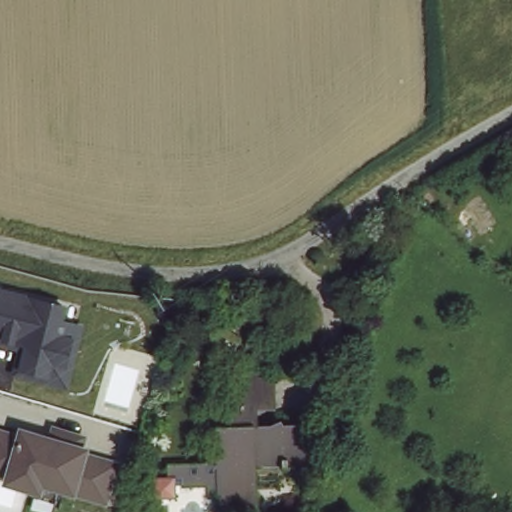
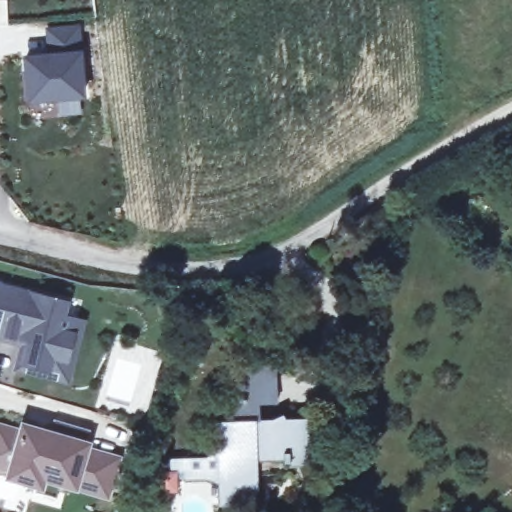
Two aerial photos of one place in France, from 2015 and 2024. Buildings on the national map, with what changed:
new [(26,59),(51,56),(49,31),(77,29),(83,96),(30,100),(26,59)]
unchanged [(14,363),(21,341),(0,336),(0,278),(72,290),(68,304),(85,308),(69,375),(14,363)]
unchanged [(206,456),(215,446),(213,419),(230,418),(227,368),(267,368),(269,417),(302,416),(303,435),(297,435),(297,455),(278,456),(276,440),(248,441),(251,495),(217,496),(216,490),(207,478),(175,479),(168,479),(166,458),(180,457),(206,456)]
unchanged [(14,475),(15,468),(0,464),(0,427),(5,428),(26,435),(28,430),(55,438),(60,424),(87,433),(83,447),(85,447),(83,453),(115,462),(105,493),(63,480),(60,488),(57,498),(36,491),(40,482),(14,475)]

